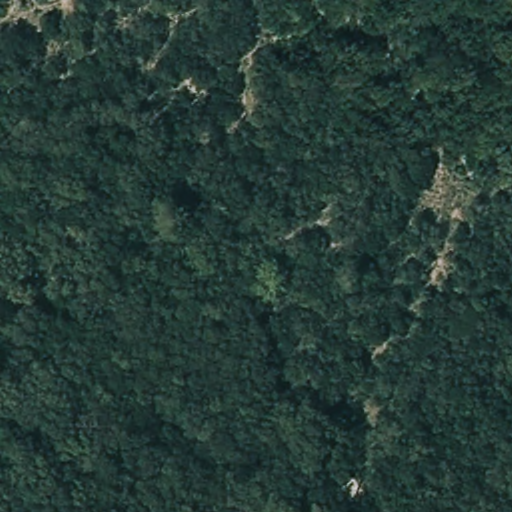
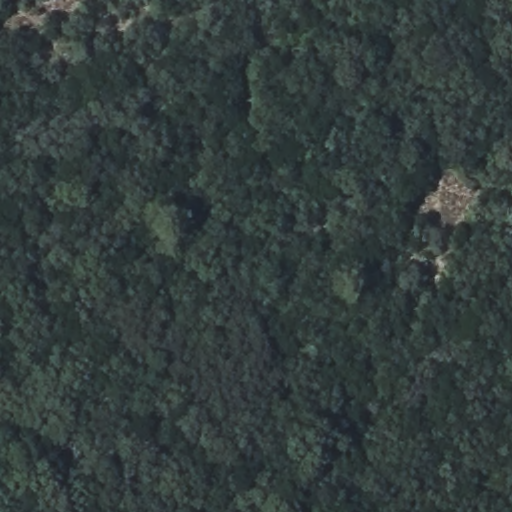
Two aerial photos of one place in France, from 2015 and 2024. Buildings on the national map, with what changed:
unchanged [(348,475),(361,481),(354,496),(341,489),(348,475)]

